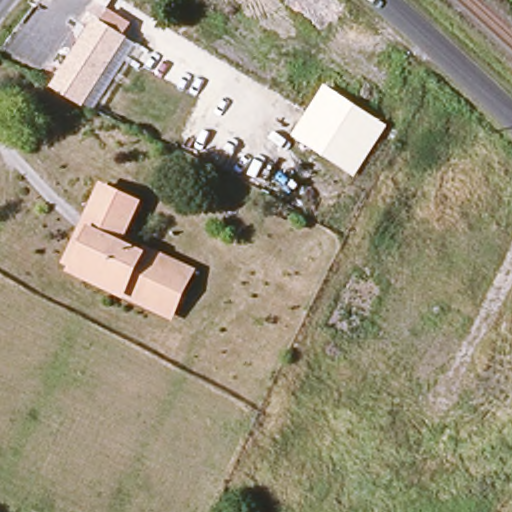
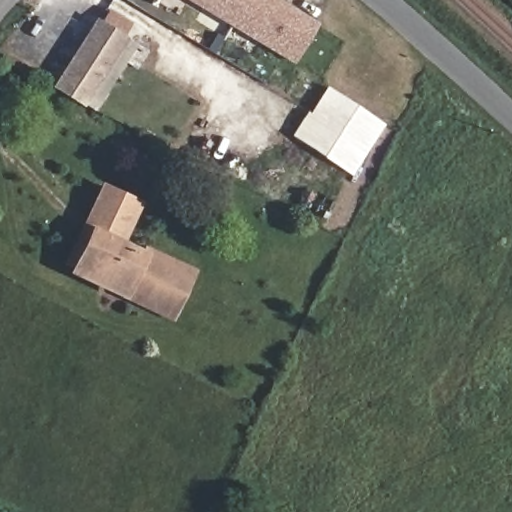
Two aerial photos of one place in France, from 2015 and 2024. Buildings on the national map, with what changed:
new [(191,0),(247,0),(233,24),(191,0)]
new [(233,24),(247,0),(283,0),(320,21),(297,61),(233,24)]
unchanged [(84,34),(93,21),(99,25),(110,10),(133,24),(125,40),(150,56),(139,75),(124,68),(95,115),(43,89),(73,30),(84,34)]
unchanged [(341,158),(300,127),(310,115),(329,91),(366,120),(376,129),(352,165),(341,158)]
unchanged [(139,205),(121,244),(184,275),(165,315),(78,273),(61,267),(81,225),(99,186),(139,205)]

